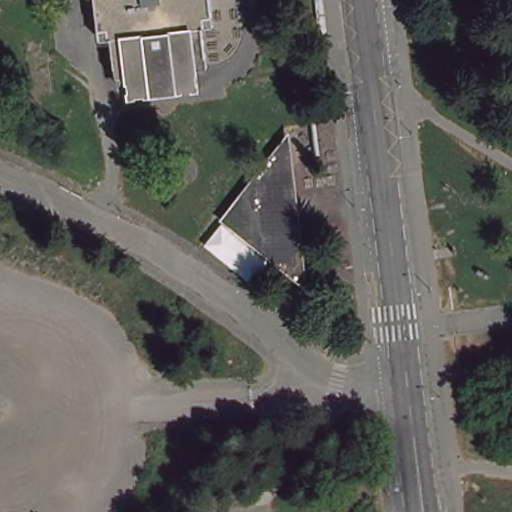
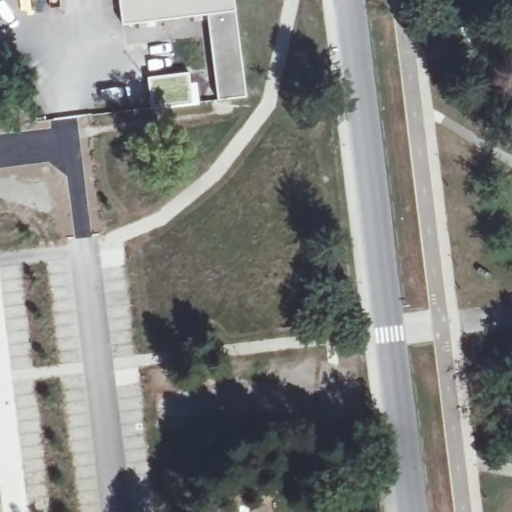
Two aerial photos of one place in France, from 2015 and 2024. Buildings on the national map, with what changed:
demolished [(196,22),(200,63),(188,65),(190,84),(122,92),(120,70),(109,72),(104,33),(91,34),(88,0),(205,0),(208,20),(196,22)]
new [(219,100),(208,11),(123,23),(117,0),(234,0),(247,95),(219,100)]
demolished [(288,135),(306,290),(219,221),(288,135)]

